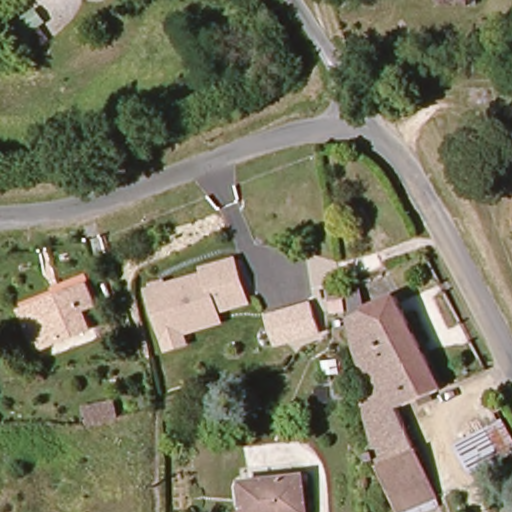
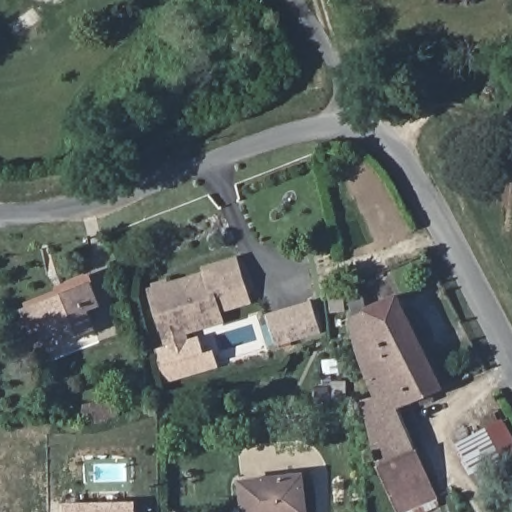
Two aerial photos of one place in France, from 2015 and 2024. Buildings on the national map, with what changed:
unchanged [(448,0),(477,0),(477,9),(448,5),(448,0)]
unchanged [(252,304),(221,314),(225,323),(186,334),(190,347),(165,354),(146,289),(151,288),(151,283),(167,278),(169,282),(204,273),(201,265),(236,256),(252,304)]
unchanged [(20,304),(84,279),(91,298),(79,304),(83,316),(32,337),(20,304)]
unchanged [(375,469),(357,399),(371,393),(350,337),(347,306),(358,302),(362,310),(393,295),(438,389),(397,408),(413,449),(375,469)]
unchanged [(310,302),(320,334),(275,348),(265,313),(310,302)]
new [(165,354),(190,347),(187,338),(198,336),(202,353),(213,349),(217,369),(162,384),(154,348),(162,346),(165,354)]
unchanged [(115,400),(119,419),(84,426),(80,405),(115,400)]
unchanged [(512,436),(512,454),(500,460),(506,473),(476,488),(456,445),(501,418),(512,436)]
unchanged [(415,454),(427,478),(389,497),(375,469),(413,449),(415,454)]
unchanged [(427,478),(439,503),(420,512),(396,512),(389,497),(427,478)]
unchanged [(298,479),(300,512),(243,512),(241,483),(281,481),(298,479)]
new [(136,512),(63,512),(63,502),(135,500),(136,512)]

